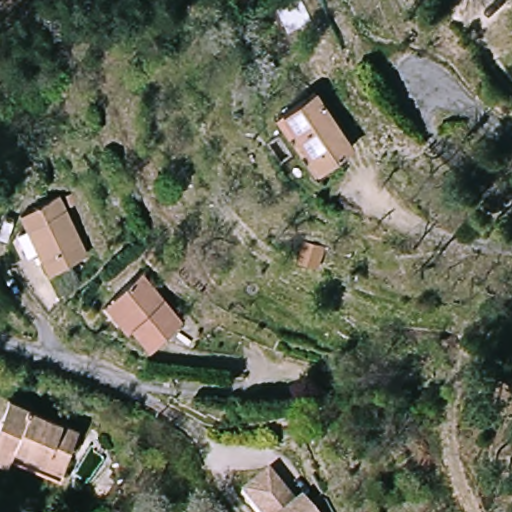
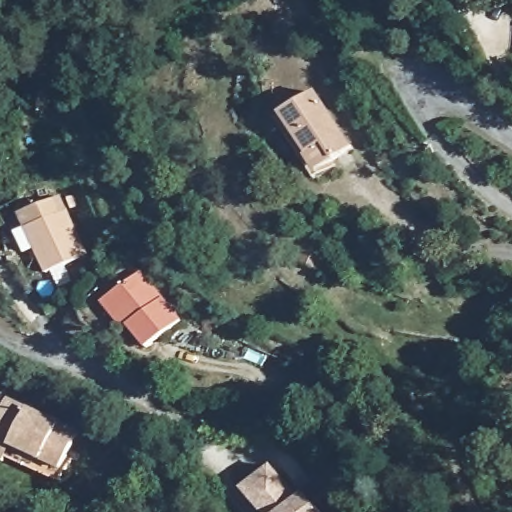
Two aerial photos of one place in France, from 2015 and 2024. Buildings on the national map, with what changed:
unchanged [(280,110),(313,87),(353,140),(343,146),(331,154),(319,139),(306,147),(292,127),(280,110)]
unchanged [(315,175),(283,134),(292,127),(306,147),(319,139),(331,154),(343,146),(348,154),(315,175)]
unchanged [(31,229),(24,217),(60,198),(90,251),(55,270),(45,253),(34,258),(20,234),(31,229)]
unchanged [(331,262),(315,259),(320,241),(335,244),(331,262)]
unchanged [(142,273),(182,323),(142,351),(128,334),(102,303),(112,295),(142,273)]
unchanged [(5,393),(70,430),(55,452),(47,464),(8,441),(0,453),(0,401),(5,393)]
unchanged [(0,456),(0,453),(8,441),(47,464),(55,452),(65,458),(47,482),(0,456)]
unchanged [(255,506),(240,490),(250,482),(265,470),(293,499),(302,493),(317,512),(260,512),(255,506)]

